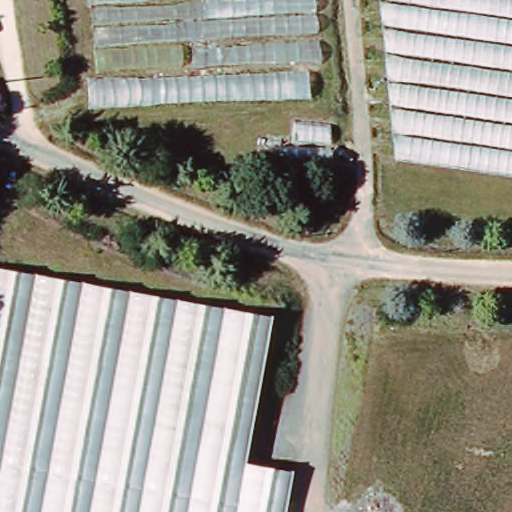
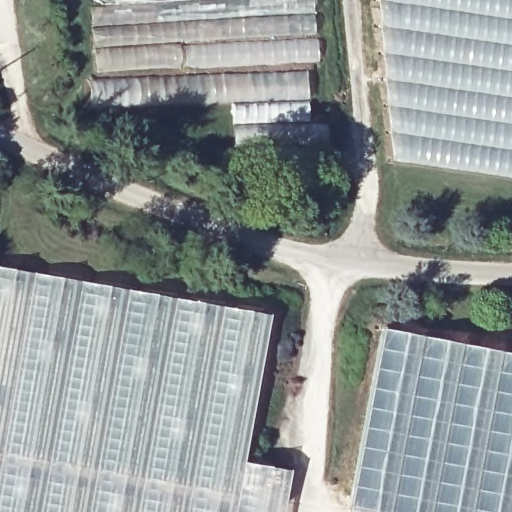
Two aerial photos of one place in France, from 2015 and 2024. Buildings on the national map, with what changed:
unchanged [(318,0),(326,76),(310,79),(101,81),(92,0),(318,0)]
unchanged [(380,0),(512,0),(512,176),(397,159),(380,0)]
unchanged [(309,101),(87,110),(89,81),(101,81),(310,79),(309,101)]
unchanged [(242,466),(289,476),(282,512),(0,512),(0,266),(198,306),(267,321),(242,466)]
new [(385,324),(512,349),(512,512),(350,512),(385,324)]

